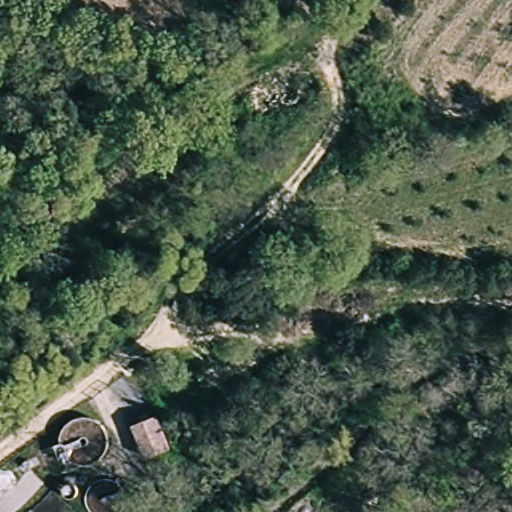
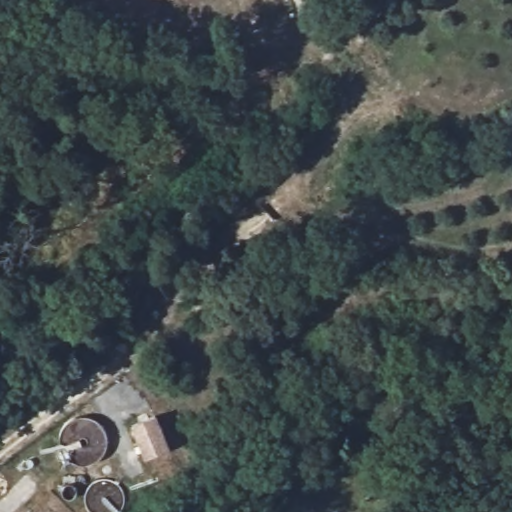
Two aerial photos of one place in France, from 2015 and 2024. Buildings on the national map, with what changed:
unchanged [(136,429),(158,417),(158,416),(173,443),(176,446),(154,459),(136,429)]

